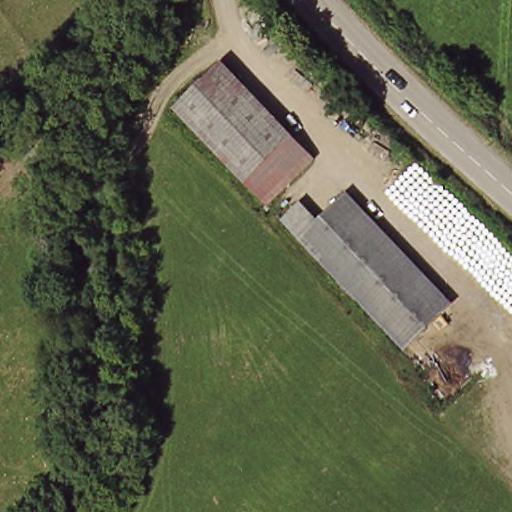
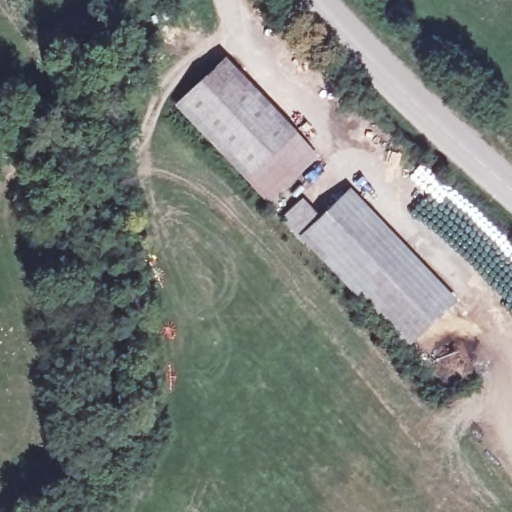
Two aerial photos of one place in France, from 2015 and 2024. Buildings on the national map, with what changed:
unchanged [(275,194),(174,111),(215,64),(315,148),(275,194)]
unchanged [(282,225),(297,208),(314,222),(342,193),(458,292),(417,340),(299,240),(282,225)]

